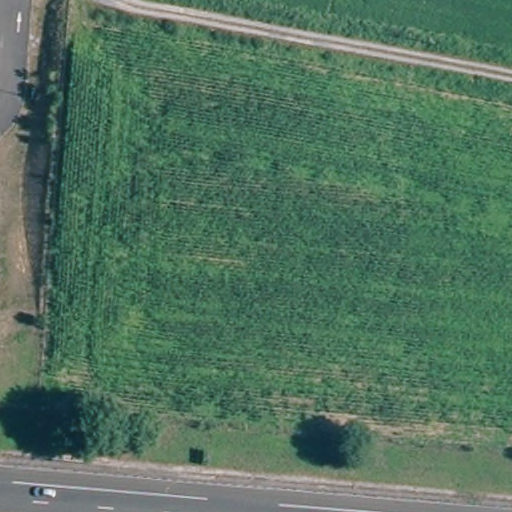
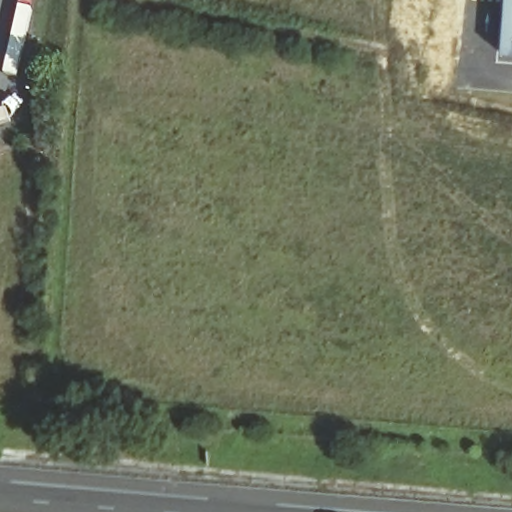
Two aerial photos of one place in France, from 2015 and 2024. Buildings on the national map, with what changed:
new [(512,0),(512,58),(502,56),(505,0),(512,0)]

